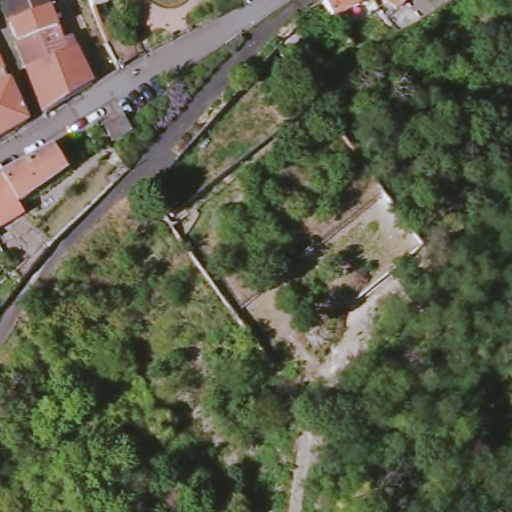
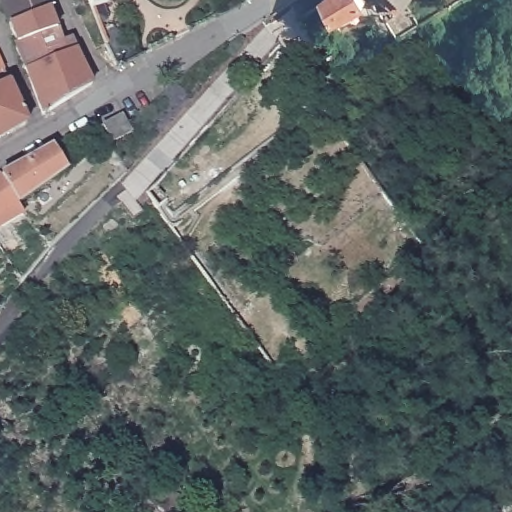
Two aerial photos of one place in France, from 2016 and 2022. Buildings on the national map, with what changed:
unchanged [(52,13),(13,28),(7,12),(2,0),(48,0),(52,13)]
unchanged [(102,5),(107,21),(100,24),(90,0),(89,0),(115,0),(102,5)]
unchanged [(120,2),(120,0),(126,0),(120,2)]
unchanged [(328,0),(362,0),(367,7),(335,22),(322,3),(328,0)]
unchanged [(405,7),(397,14),(380,5),(381,0),(410,0),(405,7)]
unchanged [(27,67),(13,28),(52,13),(62,45),(73,41),(80,55),(30,74),(27,67)]
unchanged [(35,122),(0,143),(0,44),(35,122)]
unchanged [(95,90),(47,119),(30,74),(80,55),(95,90)]
unchanged [(107,131),(127,119),(136,135),(117,147),(107,131)]
unchanged [(29,161),(55,146),(70,170),(22,201),(5,175),(29,161)]
unchanged [(5,175),(22,201),(0,216),(0,179),(5,175)]

